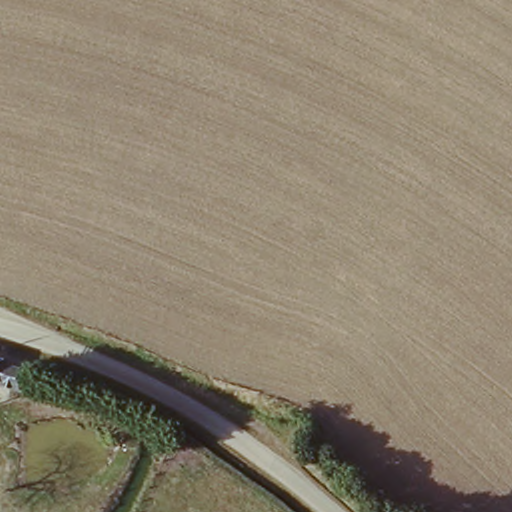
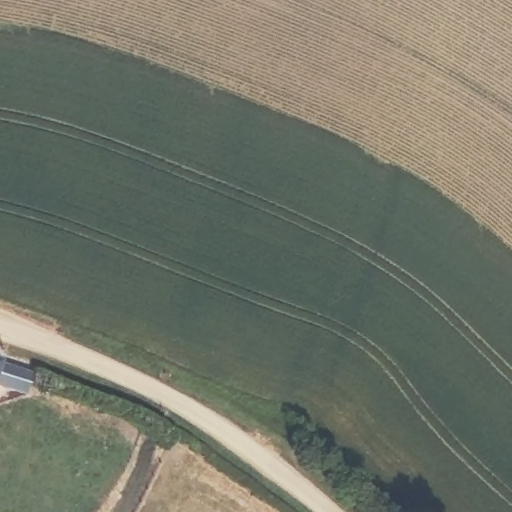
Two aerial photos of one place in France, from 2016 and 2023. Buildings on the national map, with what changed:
unchanged [(2,361),(0,370),(0,360),(2,361)]
unchanged [(30,379),(23,398),(0,389),(0,370),(30,379)]

